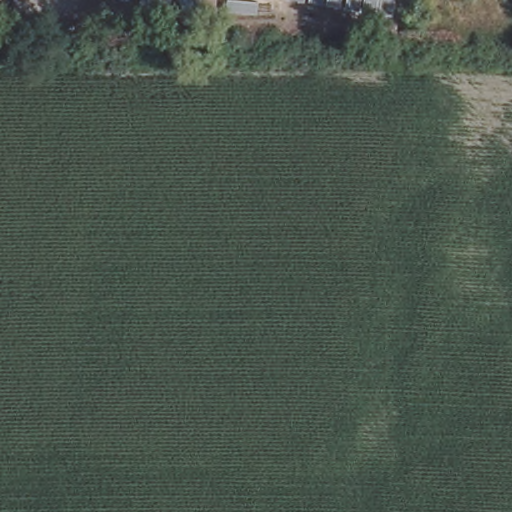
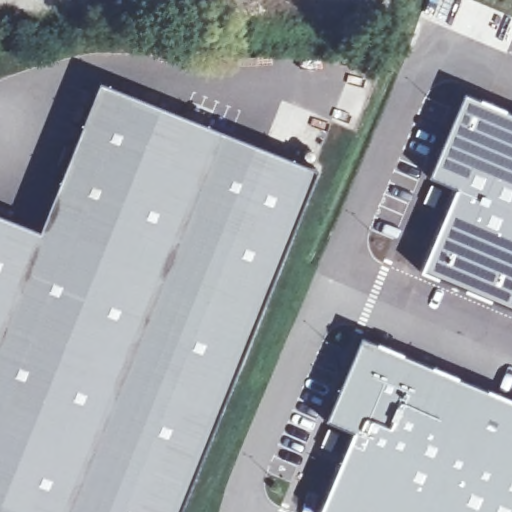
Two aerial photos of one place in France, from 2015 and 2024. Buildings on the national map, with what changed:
new [(39,230),(99,81),(317,168),(179,512),(0,512),(0,214),(39,230)]
new [(445,187),(436,209),(422,202),(431,180),(427,178),(436,152),(462,91),(497,104),(512,110),(512,306),(511,306),(418,270),(450,189),(445,187)]
new [(512,512),(318,512),(351,432),(327,420),(362,337),(512,400),(512,512)]

